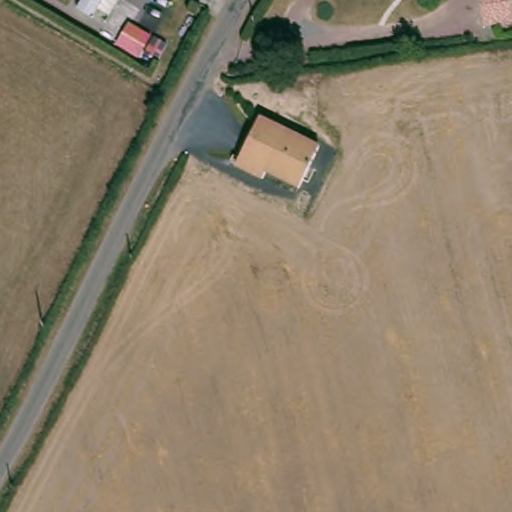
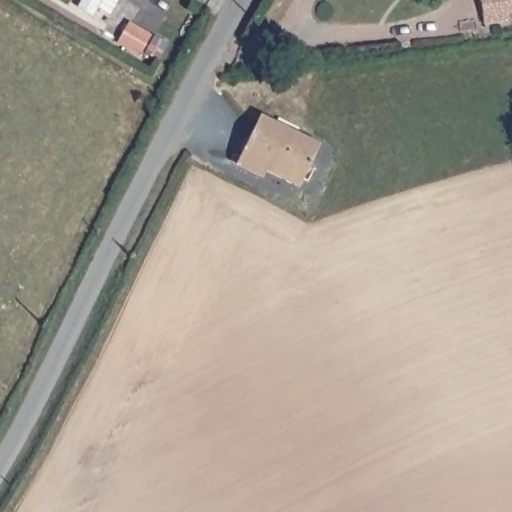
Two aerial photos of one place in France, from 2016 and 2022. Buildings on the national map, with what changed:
unchanged [(107,15),(96,10),(92,21),(74,10),(80,0),(116,0),(107,15)]
unchanged [(512,17),(512,21),(483,26),(479,0),(509,0),(512,17)]
unchanged [(318,147),(298,188),(265,172),(262,179),(235,166),(259,118),(318,147)]

